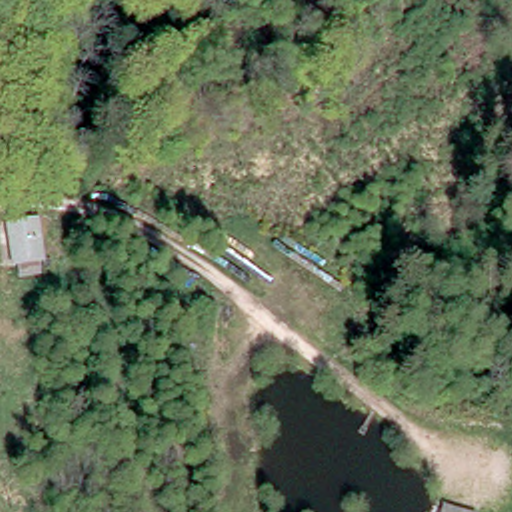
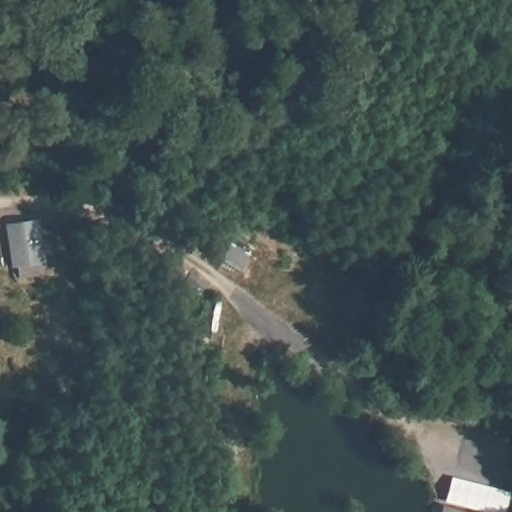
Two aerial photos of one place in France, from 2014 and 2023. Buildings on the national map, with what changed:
unchanged [(9,266),(7,228),(40,227),(44,262),(9,266)]
unchanged [(464,512),(440,512),(442,506),(464,512)]

